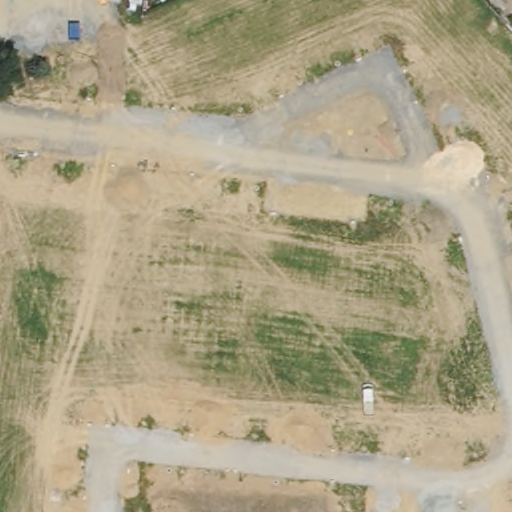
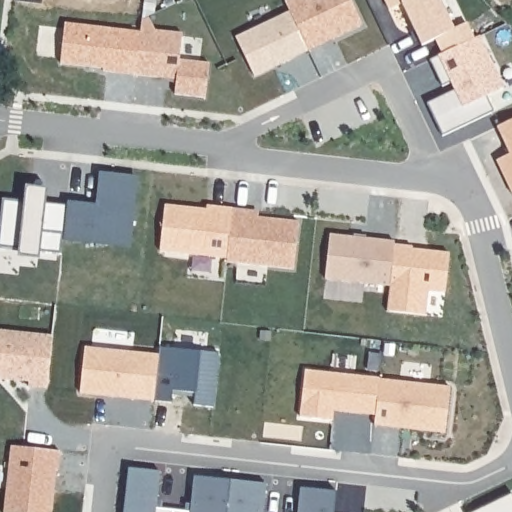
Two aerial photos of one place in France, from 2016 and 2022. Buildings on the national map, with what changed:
demolished [(28,0),(21,39),(0,37),(0,0),(28,0)]
new [(255,76),(236,37),(290,11),(284,0),(286,0),(351,0),(362,25),(255,76)]
new [(150,15),(156,30),(181,32),(180,59),(208,63),(206,99),(174,94),(176,79),(135,73),(142,17),(150,15)]
new [(510,155),(497,126),(512,119),(512,191),(497,160),(510,155)]
new [(25,198),(26,186),(47,189),(46,201),(67,205),(68,201),(97,204),(100,171),(138,175),(131,249),(64,240),(62,254),(39,250),(38,257),(19,254),(19,248),(0,246),(0,241),(4,196),(25,198)]
new [(209,209),(209,205),(217,206),(235,208),(229,257),(162,250),(168,204),(209,209)]
new [(235,208),(262,210),(261,218),(298,222),(294,267),(229,262),(229,257),(235,208)]
new [(333,233),(397,241),(392,286),(327,279),(333,233)]
new [(52,335),(47,388),(29,386),(29,380),(0,378),(0,329),(52,335)]
new [(450,386),(444,432),(375,424),(376,414),(334,410),(333,421),(300,417),(306,369),(450,386)]
new [(59,449),(52,512),(5,512),(11,445),(59,449)]
new [(161,470),(157,507),(191,511),(195,474),(266,483),(263,512),(125,512),(129,467),(161,470)]
new [(302,486),(337,489),(336,512),(300,512),(302,486)]
new [(512,494),(512,512),(474,512),(512,494)]

